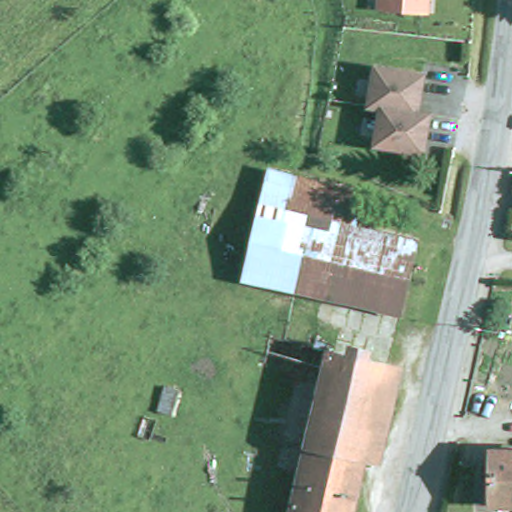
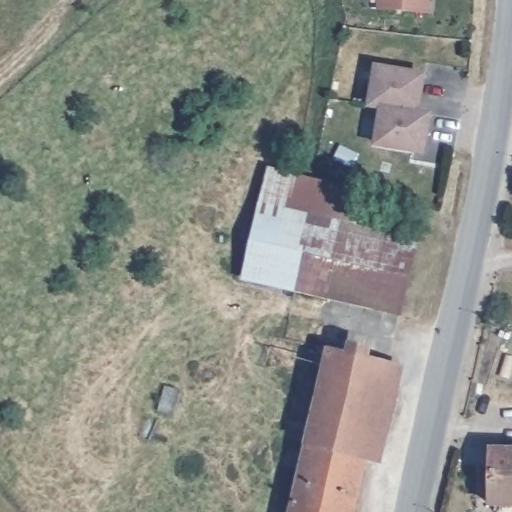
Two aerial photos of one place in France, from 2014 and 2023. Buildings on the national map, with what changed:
unchanged [(425,12),(377,10),(378,0),(426,0),(425,12)]
unchanged [(421,146),(413,145),(384,137),(392,101),(380,99),(389,61),(425,70),(435,72),(428,101),(420,100),(420,99),(418,106),(420,106),(438,111),(432,141),(430,149),(421,146)]
unchanged [(247,278),(273,171),(365,194),(355,234),(417,249),(400,317),(247,278)]
unchanged [(318,433),(363,443),(347,512),(286,512),(325,350),(337,352),(318,433)]
unchanged [(382,363),(363,443),(318,433),(337,352),(382,363)]
unchanged [(176,412),(164,407),(172,382),(185,386),(176,412)]
unchanged [(484,500),(485,447),(512,448),(512,500),(484,500)]

